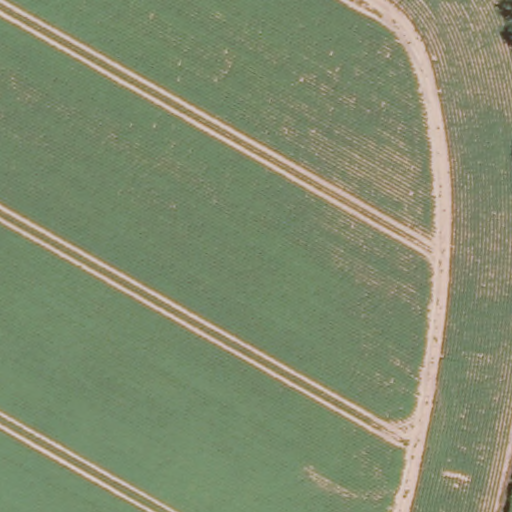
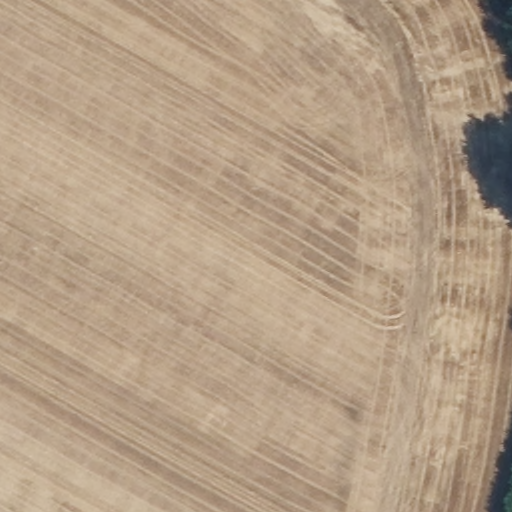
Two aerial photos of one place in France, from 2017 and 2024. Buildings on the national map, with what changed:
[]

